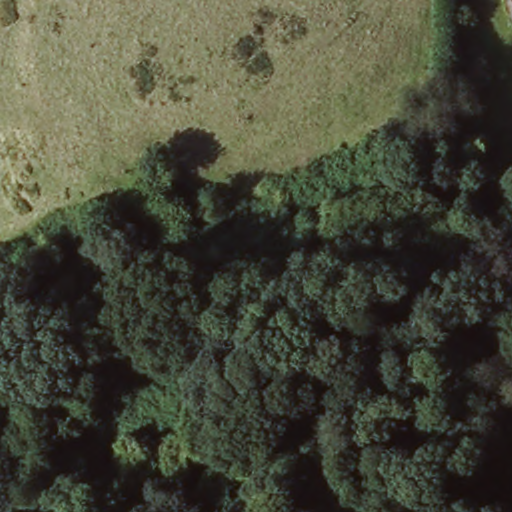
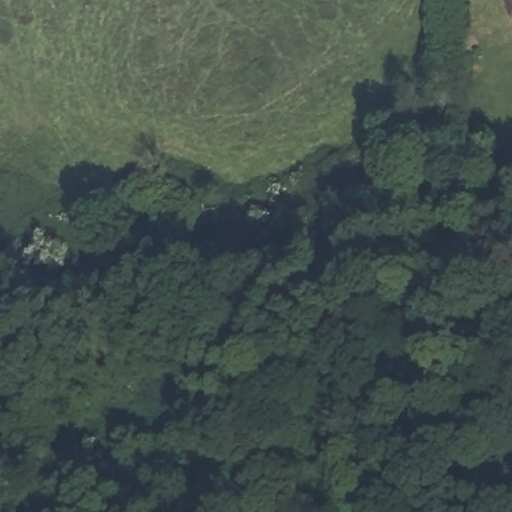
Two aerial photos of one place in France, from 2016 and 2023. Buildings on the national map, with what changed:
unchanged [(512,0),(512,20),(507,0),(512,0)]

